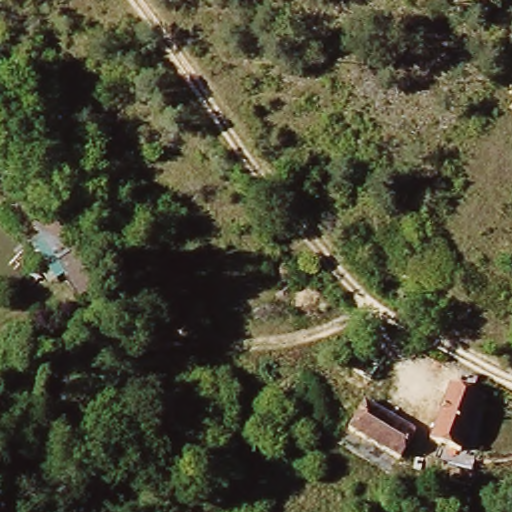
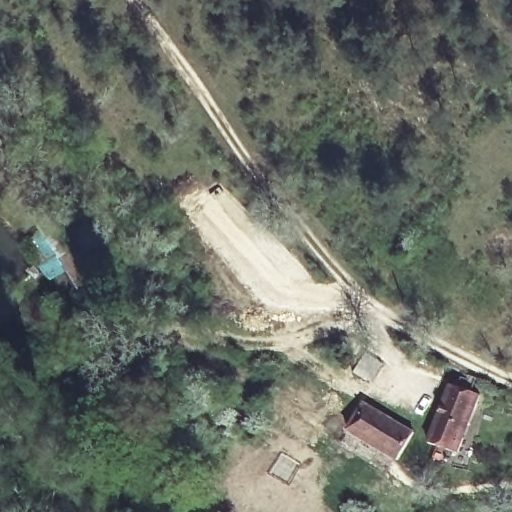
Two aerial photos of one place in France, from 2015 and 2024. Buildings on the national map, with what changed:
unchanged [(347,371),(362,347),(379,358),(366,376),(347,371)]
unchanged [(475,391),(478,391),(478,392),(461,455),(430,446),(447,390),(447,388),(447,387),(475,391)]
unchanged [(347,426),(363,401),(410,431),(394,456),(347,426)]

